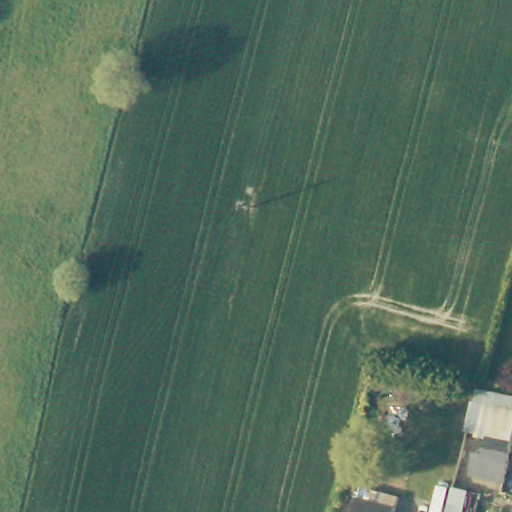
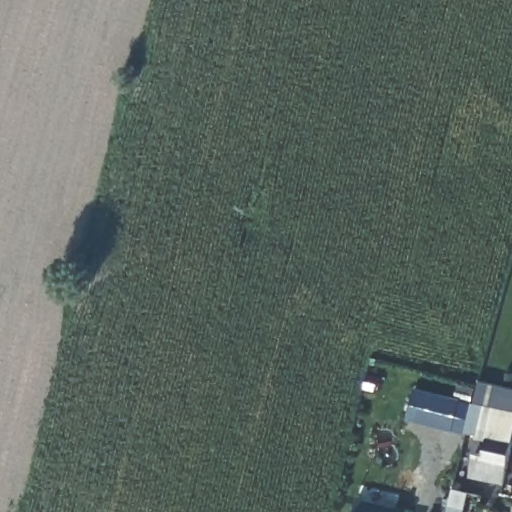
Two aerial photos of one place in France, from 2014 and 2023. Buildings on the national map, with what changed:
new [(454,430),(405,418),(415,387),(460,399),(454,430)]
unchanged [(473,483),(485,442),(473,441),(478,412),(488,413),(492,391),(512,394),(512,449),(503,487),(473,483)]
unchanged [(395,512),(354,512),(356,502),(395,512)]

